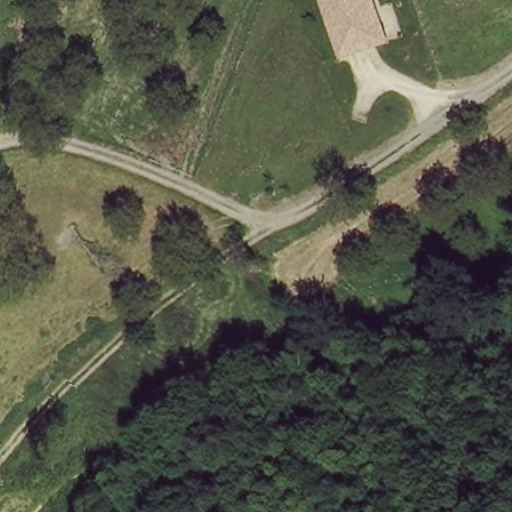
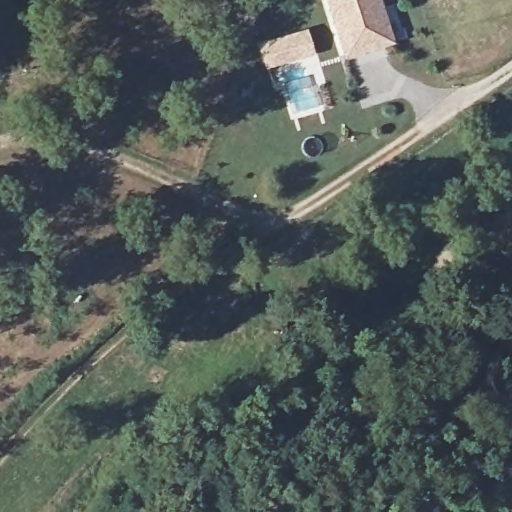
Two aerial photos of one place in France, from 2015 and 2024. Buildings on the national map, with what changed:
unchanged [(341,59),(323,0),(381,0),(394,42),(341,59)]
new [(265,68),(257,43),(307,28),(314,54),(265,68)]

